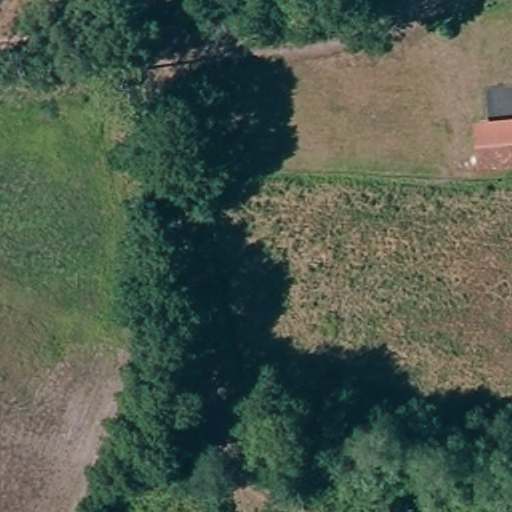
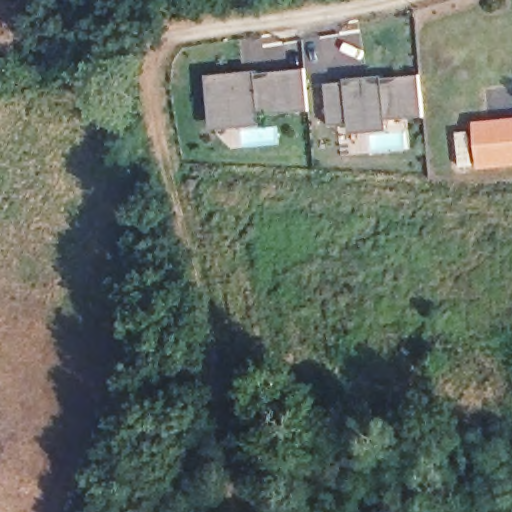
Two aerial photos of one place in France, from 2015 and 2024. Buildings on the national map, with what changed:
new [(214,118),(211,77),(305,67),(310,109),(214,118)]
new [(328,124),(325,82),(421,73),(424,116),(328,124)]
unchanged [(512,166),(478,169),(475,130),(512,127),(512,166)]

